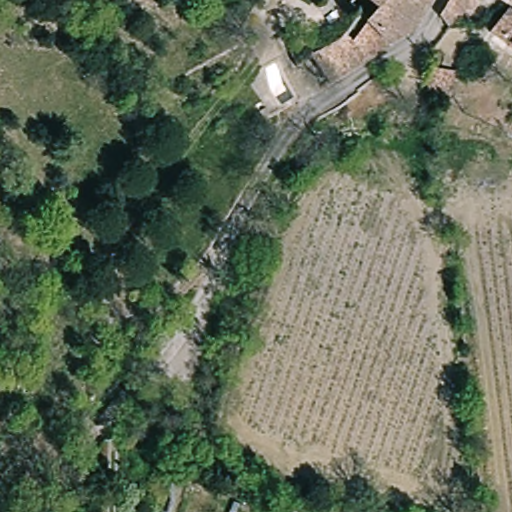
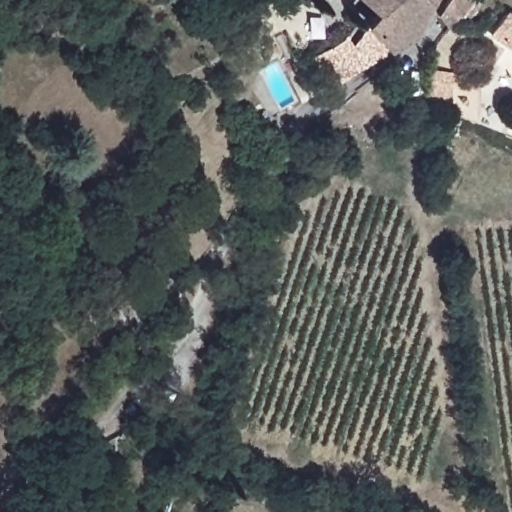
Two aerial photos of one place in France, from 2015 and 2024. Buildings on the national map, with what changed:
unchanged [(412,36),(371,61),(352,34),(381,0),(433,0),(412,36)]
unchanged [(465,14),(460,11),(456,17),(447,28),(435,12),(443,0),(474,0),(465,14)]
unchanged [(512,49),(486,32),(503,8),(512,14),(512,49)]
unchanged [(352,34),(371,61),(335,81),(314,52),(346,26),(352,34)]
unchanged [(453,70),(448,100),(426,95),(430,67),(453,70)]

